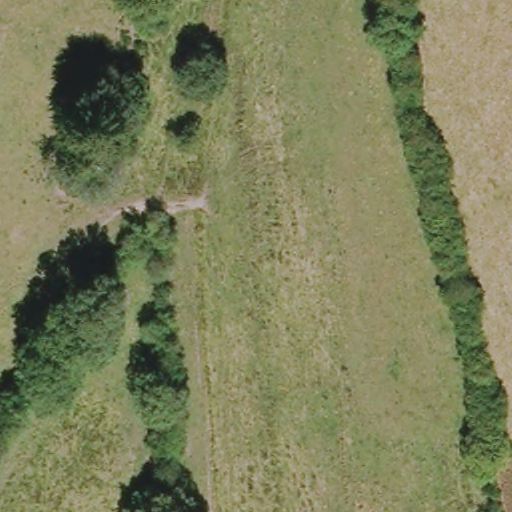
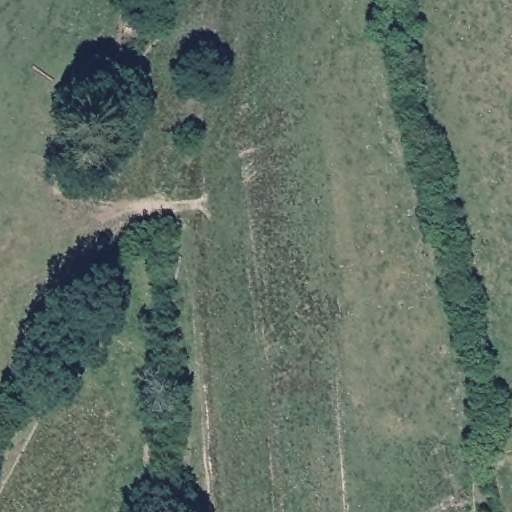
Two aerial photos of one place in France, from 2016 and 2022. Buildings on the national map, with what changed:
[]

